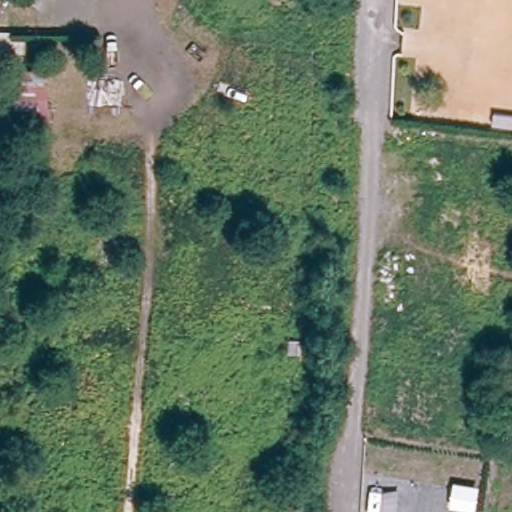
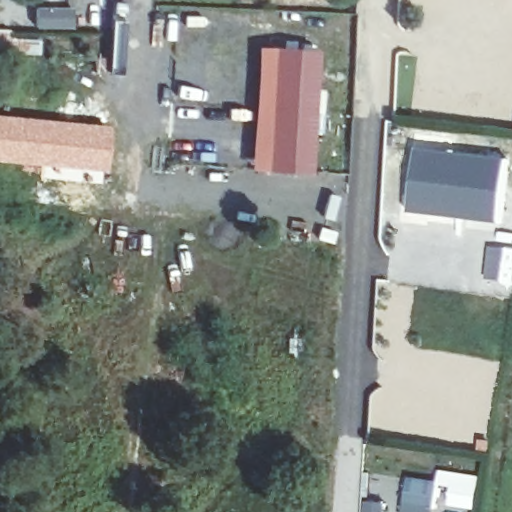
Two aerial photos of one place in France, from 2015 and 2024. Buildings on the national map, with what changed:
new [(76,7),(75,30),(35,29),(34,5),(76,7)]
new [(11,35),(41,39),(40,56),(0,51),(0,28),(12,29),(11,35)]
new [(318,50),(310,174),(267,172),(271,113),(255,113),(257,49),(318,50)]
demolished [(13,66),(45,65),(50,123),(14,119),(13,66)]
new [(486,106),(456,103),(462,73),(490,78),(488,92),(486,106)]
new [(105,173),(0,162),(0,114),(110,124),(105,173)]
new [(416,145),(506,158),(498,225),(408,214),(416,145)]
new [(490,245),(510,248),(505,283),(486,280),(490,245)]
new [(410,478),(440,484),(441,473),(481,478),(477,511),(451,508),(454,489),(440,487),(435,512),(403,512),(410,478)]

